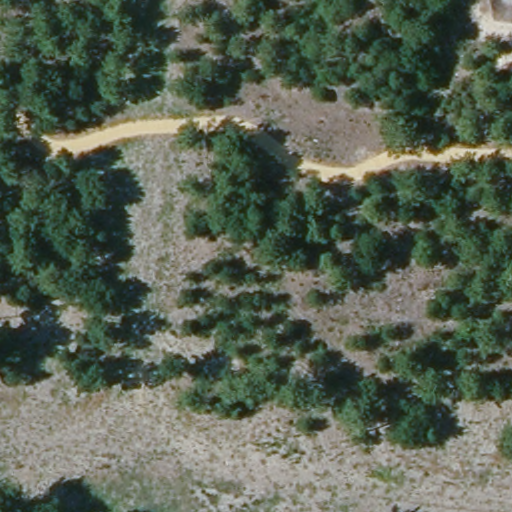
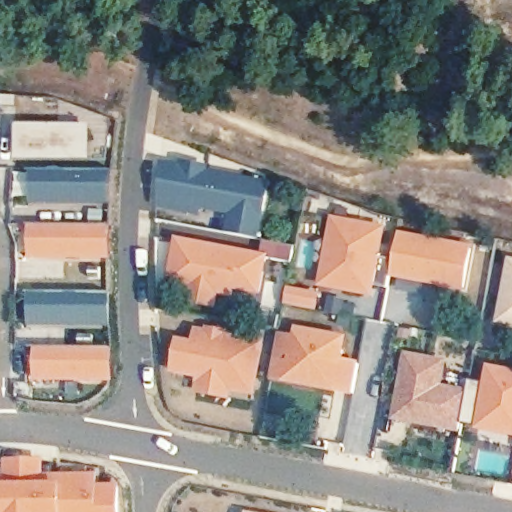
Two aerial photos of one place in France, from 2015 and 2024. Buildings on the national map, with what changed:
new [(93,162),(18,161),(18,127),(93,126),(93,162)]
new [(228,233),(231,215),(204,211),(203,217),(161,209),(163,162),(182,167),(184,161),(213,167),(212,172),(274,184),(264,239),(228,233)]
new [(114,206),(33,204),(33,172),(116,173),(114,206)]
new [(389,229),(383,257),(396,260),(401,233),(474,247),(466,292),(393,278),(390,289),(378,287),(375,298),(321,288),(333,218),(389,229)]
new [(113,261),(31,262),(32,226),(113,227),(113,261)]
new [(238,292),(237,300),(222,297),(220,308),(189,302),(190,292),(169,288),(178,239),(265,256),(267,242),(298,249),(295,263),(272,258),(264,295),(238,292)]
new [(512,260),(512,327),(499,325),(511,260),(512,260)]
new [(112,327),(32,327),(31,295),(112,295),(112,327)]
new [(258,396),(234,391),(232,401),(201,395),(203,380),(174,376),(180,338),(196,342),(198,329),(209,331),(210,327),(231,332),(230,336),(267,343),(258,396)]
new [(296,336),(298,327),(350,337),(346,360),(359,363),(354,397),(272,383),(281,334),(296,336)]
new [(115,383),(38,382),(38,350),(116,350),(115,383)]
new [(450,362),(445,386),(471,392),(466,426),(461,423),(459,434),(395,422),(406,355),(450,362)]
new [(466,426),(472,382),(487,385),(490,367),(512,371),(512,434),(466,426)]
new [(0,475),(7,475),(7,460),(47,460),(48,484),(63,483),(64,476),(101,475),(101,487),(123,486),(123,512),(0,512),(0,475)]

